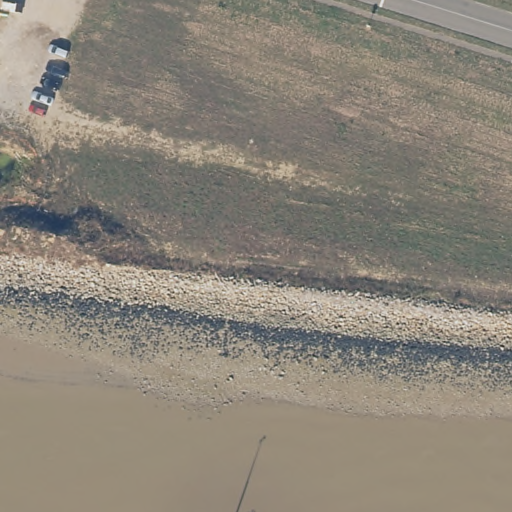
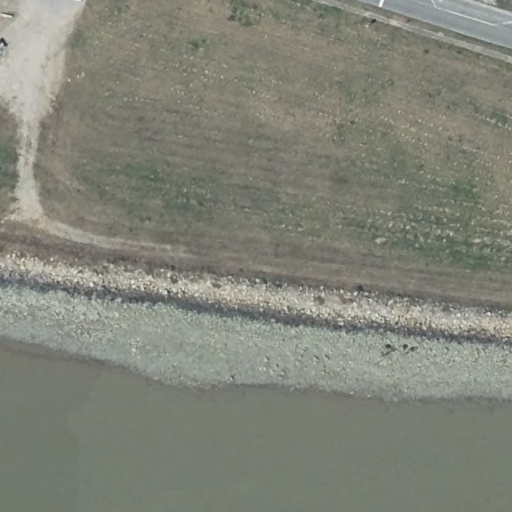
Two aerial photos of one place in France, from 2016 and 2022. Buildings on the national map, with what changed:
[]

